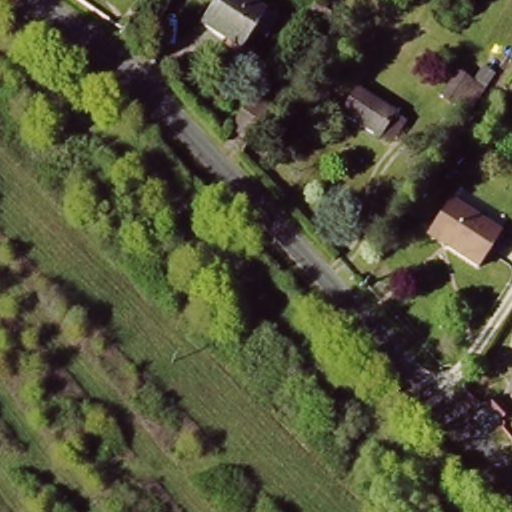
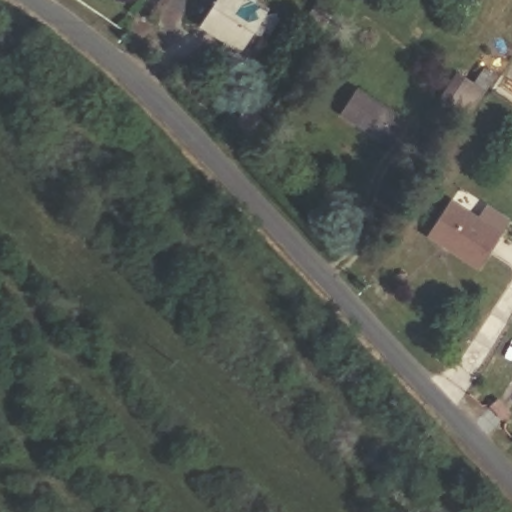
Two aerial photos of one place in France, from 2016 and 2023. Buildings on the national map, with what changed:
unchanged [(197,31),(213,0),(252,0),(267,11),(243,59),(197,31)]
unchanged [(440,113),(458,83),(471,91),(453,121),(440,113)]
unchanged [(387,147),(341,117),(362,85),(404,118),(387,147)]
unchanged [(246,156),(231,142),(258,103),(274,114),(246,156)]
unchanged [(503,230),(477,269),(427,235),(452,197),(503,230)]

